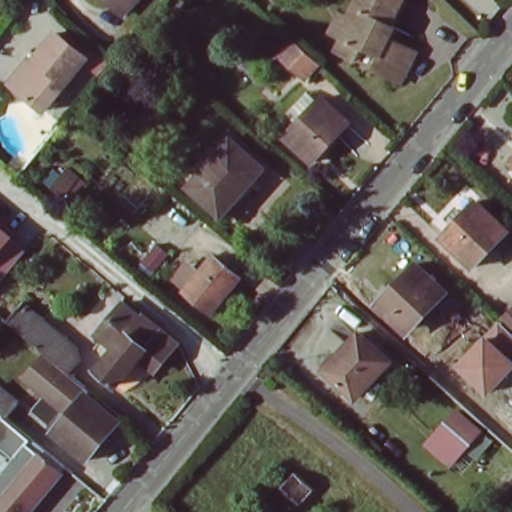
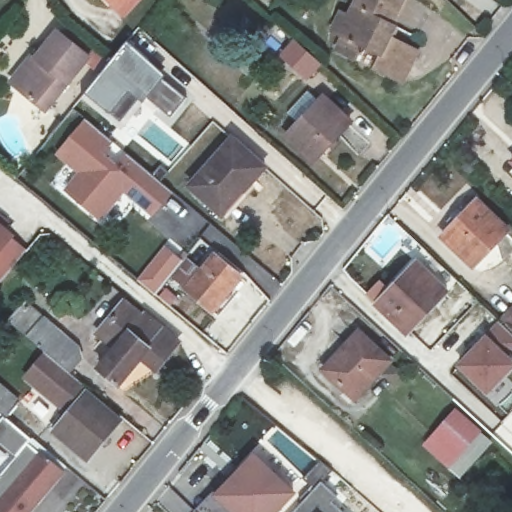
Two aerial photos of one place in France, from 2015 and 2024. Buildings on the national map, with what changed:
unchanged [(125,16),(113,4),(117,0),(141,0),(125,16)]
unchanged [(411,67),(401,84),(386,75),(373,67),(380,55),(366,46),(359,59),(338,47),(346,35),(341,32),(331,26),(343,7),(345,9),(353,13),(360,0),(407,0),(399,12),(392,24),(398,27),(392,37),(403,43),(420,52),(411,67)]
unchanged [(39,113),(7,88),(30,61),(25,58),(48,31),(59,40),(83,59),(39,113)]
unchanged [(323,62),(307,78),(282,54),(297,37),(323,62)]
new [(87,90),(127,42),(166,76),(164,79),(185,98),(171,115),(158,105),(153,112),(143,104),(121,130),(82,99),(87,90)]
unchanged [(322,95),(351,122),(313,161),(283,136),(322,95)]
new [(86,121),(166,189),(147,211),(118,187),(113,193),(117,196),(98,219),(65,191),(80,173),(57,154),(86,121)]
unchanged [(232,139),(265,169),(223,217),(190,189),(232,139)]
unchanged [(443,232),(477,198),(509,229),(476,264),(443,232)]
unchanged [(7,225),(18,236),(15,238),(27,250),(0,280),(0,212),(11,221),(7,225)]
new [(165,246),(182,260),(156,293),(138,280),(165,246)]
unchanged [(241,276),(212,313),(184,291),(171,281),(186,261),(199,272),(214,255),(241,276)]
unchanged [(416,262),(448,291),(410,332),(378,302),(416,262)]
unchanged [(49,355),(8,319),(25,298),(81,344),(83,354),(69,371),(49,355)]
unchanged [(510,357),(512,359),(512,369),(488,395),(456,366),(487,334),(512,309),(512,355),(510,357)]
unchanged [(138,356),(115,385),(94,368),(115,343),(98,329),(111,313),(133,331),(145,316),(178,343),(162,364),(156,371),(138,356)]
unchanged [(360,329),(392,359),(357,399),(324,368),(360,329)]
new [(45,351),(49,355),(41,365),(82,399),(68,414),(23,377),(45,351)]
unchanged [(69,371),(91,390),(89,393),(121,420),(88,460),(54,430),(82,399),(41,365),(49,355),(69,371)]
unchanged [(462,411),(489,441),(445,482),(423,452),(462,411)]
unchanged [(42,447),(37,453),(63,474),(31,512),(0,512),(0,482),(22,455),(0,437),(0,413),(32,439),(42,447)]
new [(235,472),(254,451),(295,492),(277,512),(194,512),(233,470),(235,472)]
demolished [(294,473),(317,492),(303,509),(280,491),(294,473)]
new [(337,496),(331,502),(341,512),(295,512),(322,482),(337,496)]

